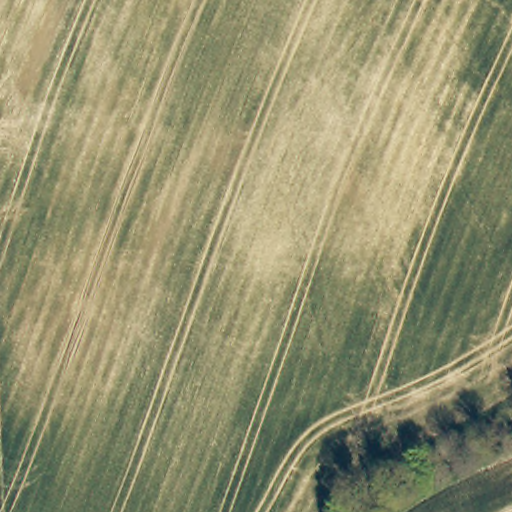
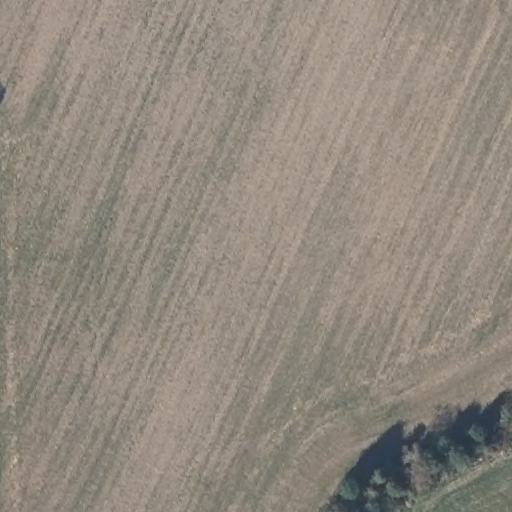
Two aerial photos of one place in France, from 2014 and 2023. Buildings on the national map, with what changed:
[]

